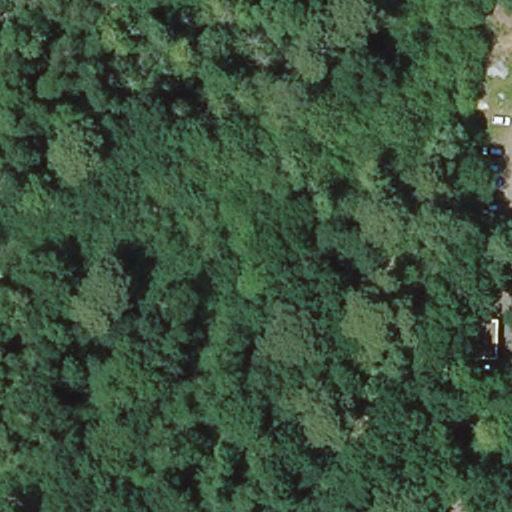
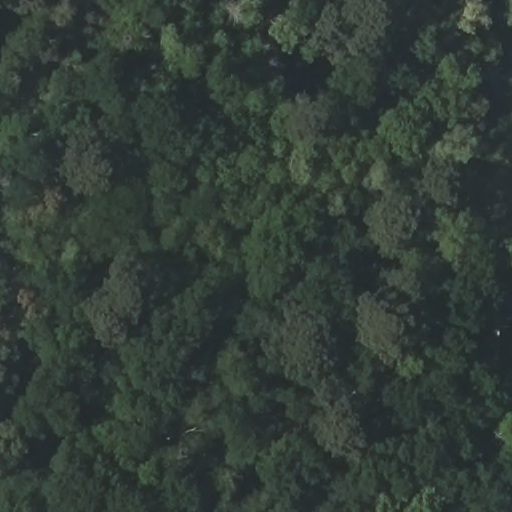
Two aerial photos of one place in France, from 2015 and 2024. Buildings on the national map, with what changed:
unchanged [(460,358),(462,316),(497,316),(497,361),(460,358)]

